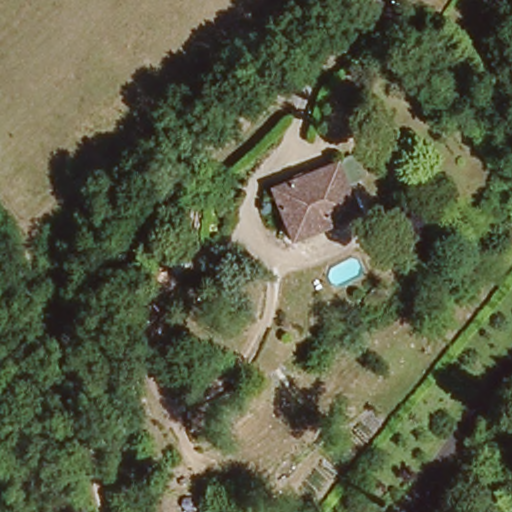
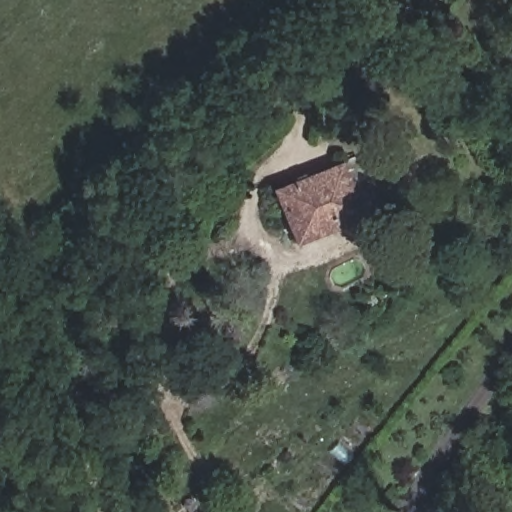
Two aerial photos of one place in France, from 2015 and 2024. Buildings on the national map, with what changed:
unchanged [(280,205),(277,189),(274,176),(345,165),(357,216),(341,220),(290,243),(280,205)]

